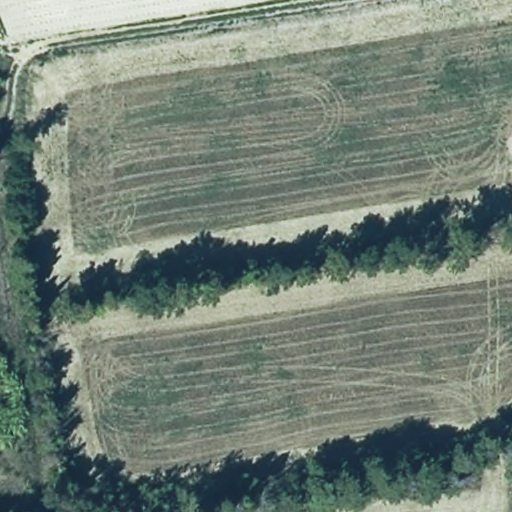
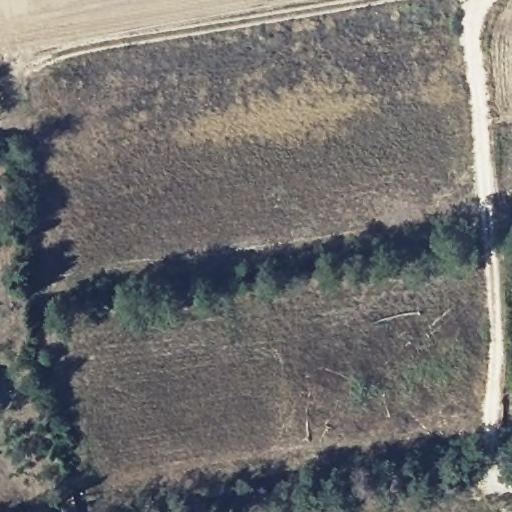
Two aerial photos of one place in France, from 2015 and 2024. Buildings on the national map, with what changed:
[]

